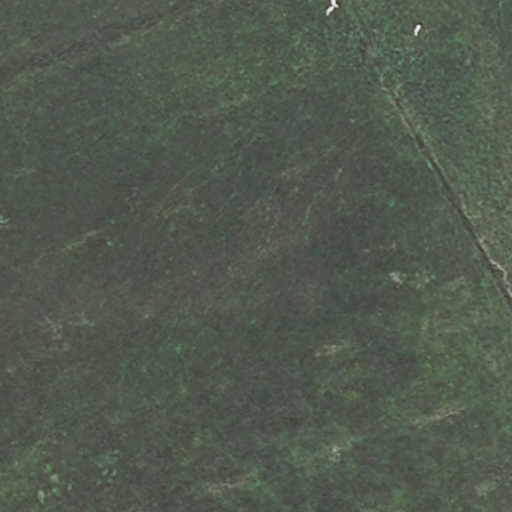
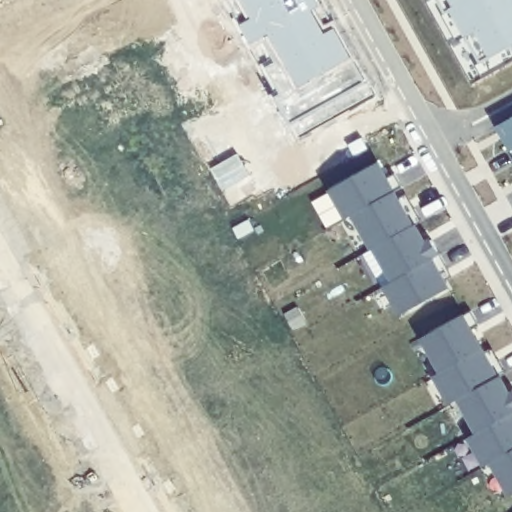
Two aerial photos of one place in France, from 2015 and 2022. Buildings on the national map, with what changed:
new [(275,1),(288,24),(310,12),(321,35),(336,29),(354,58),(292,90),(270,42),(247,51),(237,27),(248,21),(245,5),(234,10),(229,0),(278,0),(275,1)]
new [(487,62),(473,35),(462,39),(443,0),(512,0),(512,47),(487,62)]
new [(498,124),(512,117),(512,150),(498,124)]
new [(427,260),(431,257),(447,290),(395,313),(384,287),(390,283),(339,190),(380,164),(427,260)]
new [(512,407),(512,494),(503,498),(420,340),(465,316),(512,407)]

